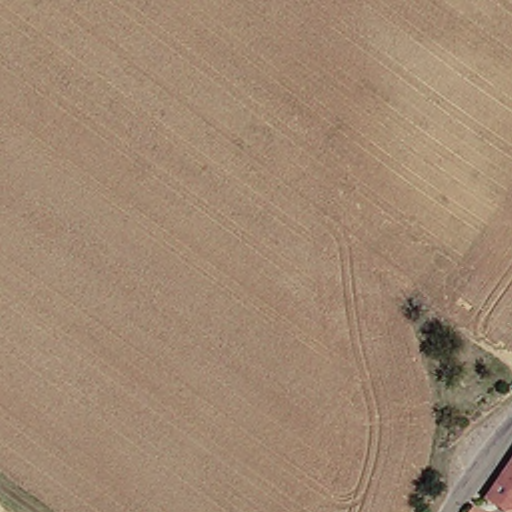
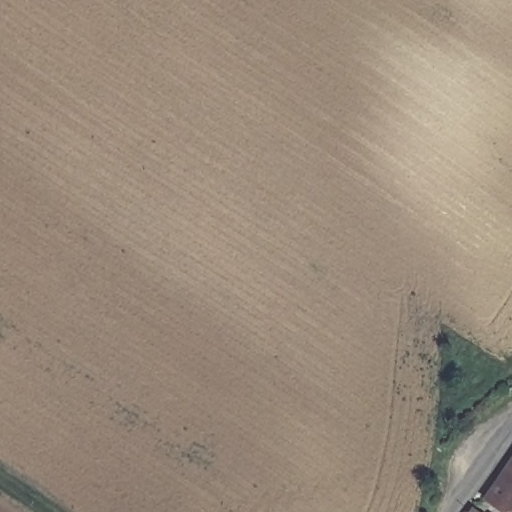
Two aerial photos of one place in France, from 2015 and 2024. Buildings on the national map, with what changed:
unchanged [(487,495),(512,463),(512,495),(502,506),(487,495)]
unchanged [(512,495),(512,512),(511,512),(502,506),(512,495)]
unchanged [(484,512),(481,512),(482,510),(484,512)]

